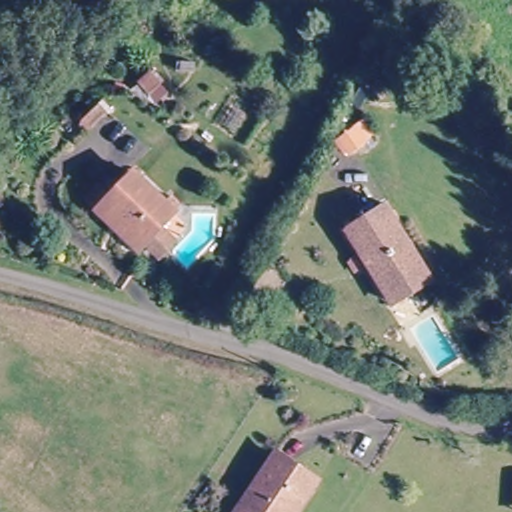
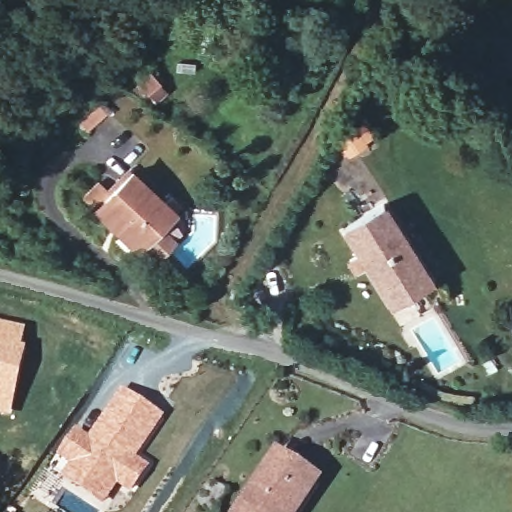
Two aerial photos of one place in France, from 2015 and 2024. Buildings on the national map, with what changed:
unchanged [(107,226),(91,211),(130,172),(175,215),(161,227),(171,237),(153,255),(144,246),(136,255),(107,226)]
unchanged [(434,280),(396,305),(346,231),(382,207),(434,280)]
new [(23,346),(26,347),(10,418),(0,416),(0,323),(26,330),(23,346)]
new [(74,426),(87,435),(121,388),(165,418),(138,457),(150,467),(130,495),(118,487),(102,506),(56,470),(58,468),(61,470),(66,465),(54,455),(74,426)]
unchanged [(239,510),(277,448),(315,472),(291,512),(242,512),(239,510)]

